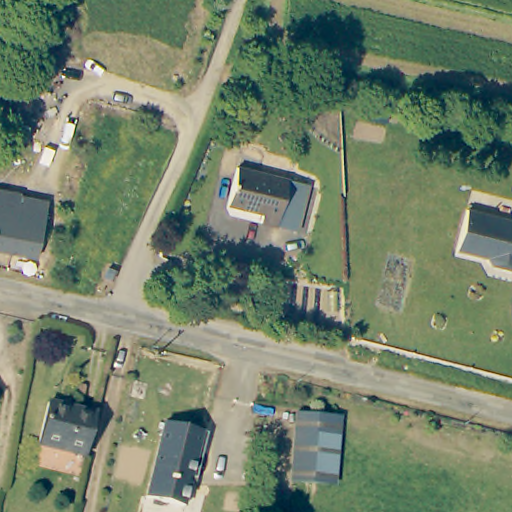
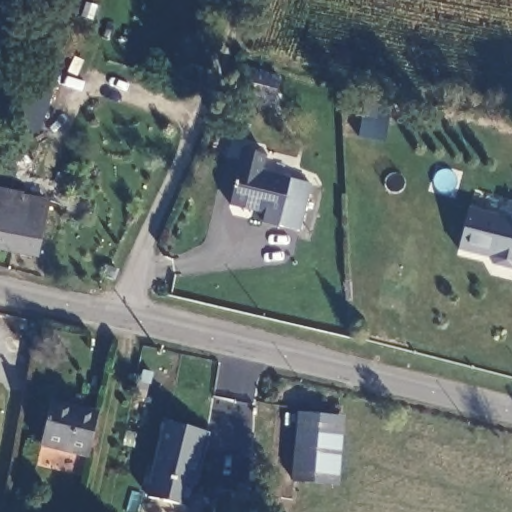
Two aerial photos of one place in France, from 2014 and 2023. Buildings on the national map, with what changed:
unchanged [(277,98),(239,89),(245,61),(262,65),(283,70),(277,98)]
unchanged [(372,90),(392,95),(389,109),(363,104),(366,89),(372,90)]
unchanged [(306,184),(295,229),(258,220),(260,215),(227,207),(236,168),(306,184)]
unchanged [(18,195),(17,200),(45,206),(34,259),(0,251),(0,192),(18,195)]
unchanged [(496,263),(462,254),(473,213),(512,223),(512,274),(500,270),(496,263)]
unchanged [(90,457),(42,447),(51,404),(98,414),(90,457)]
unchanged [(334,486),(295,483),(302,414),(340,419),(334,486)]
unchanged [(209,434),(197,479),(192,478),(185,508),(147,499),(165,423),(209,434)]

